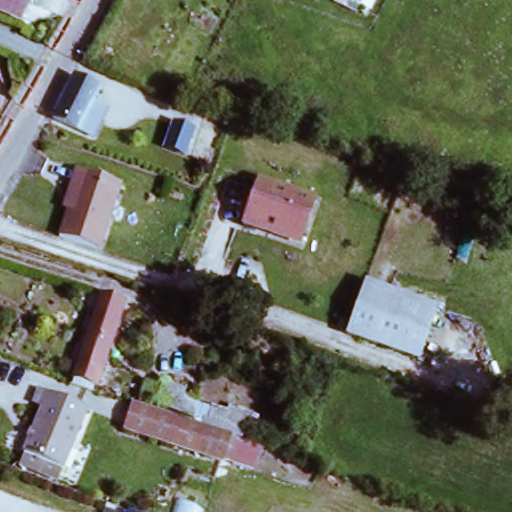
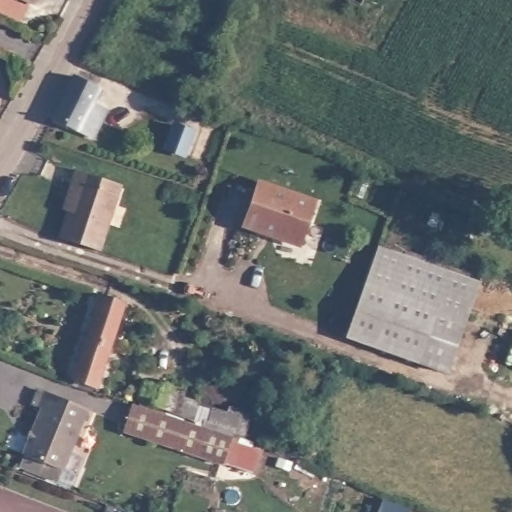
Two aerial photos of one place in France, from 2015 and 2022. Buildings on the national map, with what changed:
unchanged [(31,1),(29,0),(32,0),(31,1)]
unchanged [(103,84),(88,117),(98,120),(93,135),(54,117),(78,72),(103,84)]
unchanged [(193,127),(183,156),(161,149),(168,129),(178,132),(181,124),(193,127)]
unchanged [(78,167),(126,182),(105,249),(55,232),(78,167)]
unchanged [(319,200),(303,250),(239,230),(255,181),(319,200)]
new [(481,283),(449,375),(422,366),(440,312),(412,302),(362,283),(378,247),(481,283)]
unchanged [(440,312),(422,366),(344,337),(362,283),(440,312)]
unchanged [(75,374),(103,296),(126,303),(95,382),(75,374)]
unchanged [(31,442),(47,407),(36,403),(42,390),(90,408),(71,456),(34,442),(31,442)]
unchanged [(248,441),(238,467),(145,435),(154,407),(248,441)]
unchanged [(142,408),(152,411),(149,421),(139,418),(142,408)]
unchanged [(71,456),(60,482),(24,468),(34,442),(71,456)]
new [(378,512),(383,501),(412,512),(378,512)]
unchanged [(145,512),(132,512),(133,508),(145,512)]

